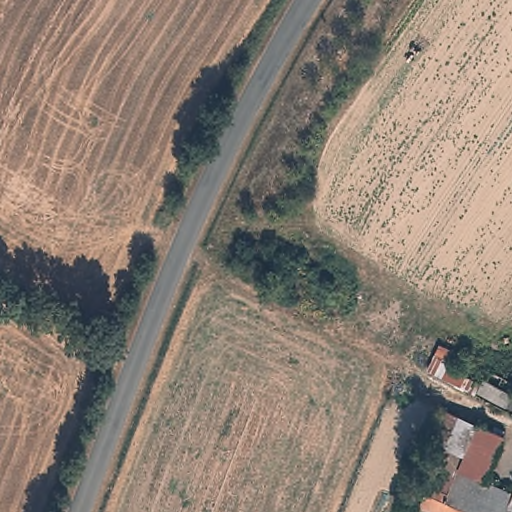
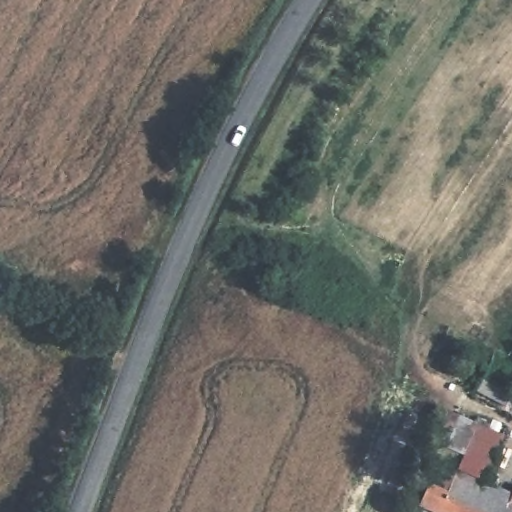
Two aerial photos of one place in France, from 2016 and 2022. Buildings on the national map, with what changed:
unchanged [(460,415),(506,437),(482,487),(436,465),(460,415)]
unchanged [(433,463),(436,465),(482,487),(509,500),(512,495),(512,512),(434,512),(415,503),(433,463)]

